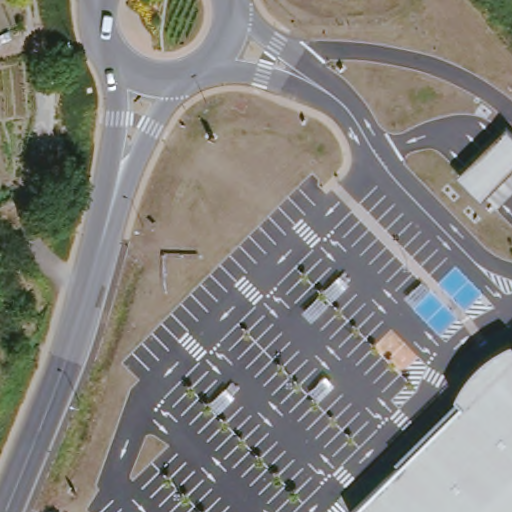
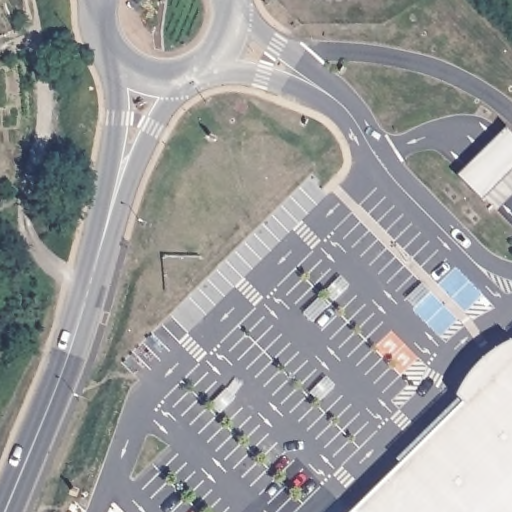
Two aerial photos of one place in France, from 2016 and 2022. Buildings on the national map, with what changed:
unchanged [(512,137),(512,167),(479,199),(456,175),(503,129),(512,137)]
unchanged [(454,396),(467,373),(475,363),(488,353),(508,342),(512,344),(512,512),(347,512),(460,402),(454,396)]

